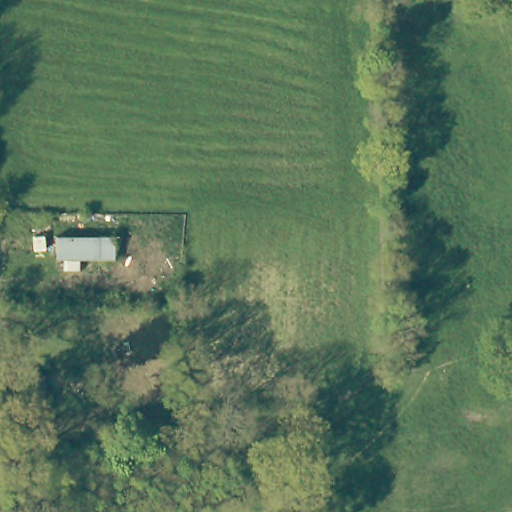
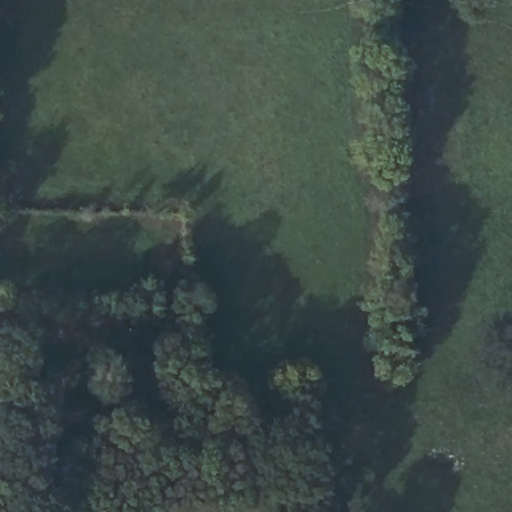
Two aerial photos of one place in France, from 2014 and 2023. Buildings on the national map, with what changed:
demolished [(114,258),(77,258),(77,251),(59,251),(59,235),(114,235),(114,258)]
unchanged [(44,376),(46,406),(31,408),(28,377),(44,376)]

